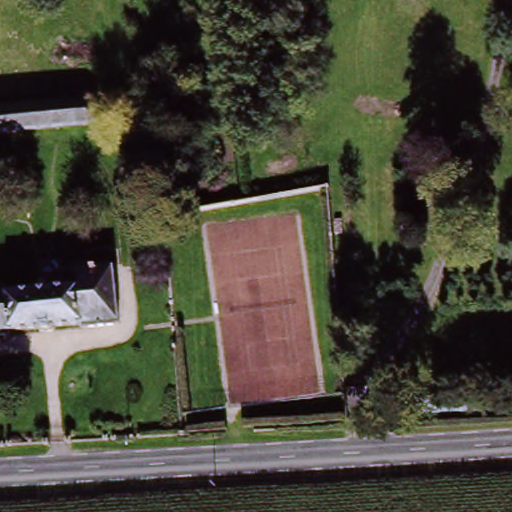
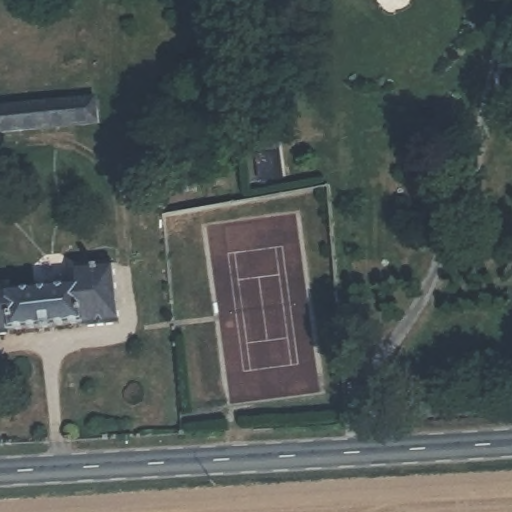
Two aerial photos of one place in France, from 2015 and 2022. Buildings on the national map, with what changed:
unchanged [(80,89),(80,104),(0,107),(0,93),(80,89)]
unchanged [(80,104),(80,89),(105,89),(103,134),(0,138),(0,107),(80,104)]
unchanged [(95,285),(95,269),(115,268),(117,325),(98,324),(96,319),(24,324),(23,332),(0,333),(0,285),(20,284),(20,290),(95,285)]

